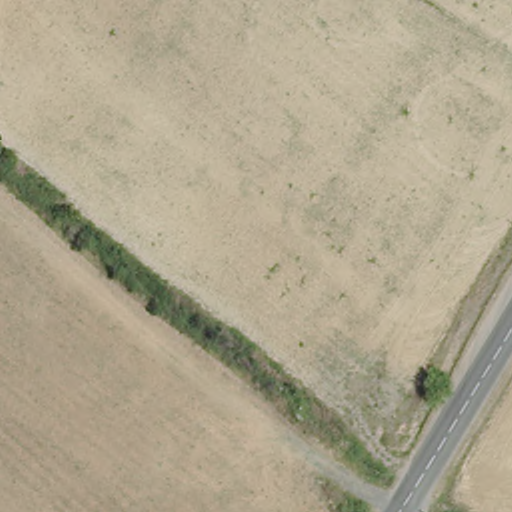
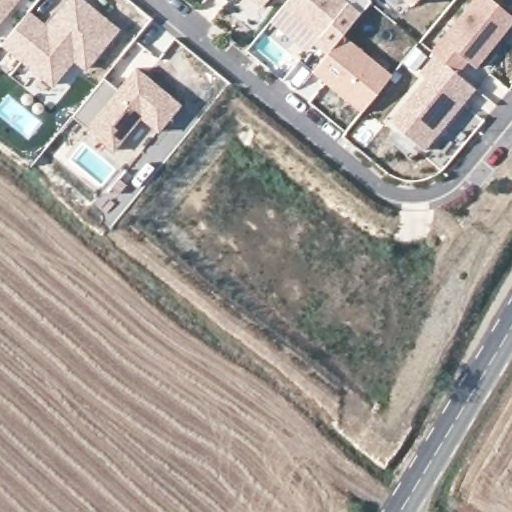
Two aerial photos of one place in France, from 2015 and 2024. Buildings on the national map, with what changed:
new [(0,13),(0,0),(11,0),(0,13)]
new [(66,58),(45,84),(0,47),(0,37),(21,11),(40,26),(62,0),(76,0),(111,29),(78,68),(66,58)]
new [(255,10),(243,0),(264,0),(255,10)]
new [(354,18),(326,51),(277,10),(285,0),(333,0),(354,18)]
new [(407,7),(399,0),(413,0),(407,7)]
new [(460,63),(450,75),(425,55),(470,0),(483,0),(504,18),(508,21),(495,36),(468,70),(460,63)]
new [(386,81),(355,117),(306,75),(336,39),(386,81)]
new [(468,94),(416,156),(382,127),(418,84),(413,79),(428,60),(468,94)]
new [(172,140),(155,126),(127,160),(100,137),(111,124),(97,112),(120,85),(133,97),(150,77),(195,114),(172,140)]

